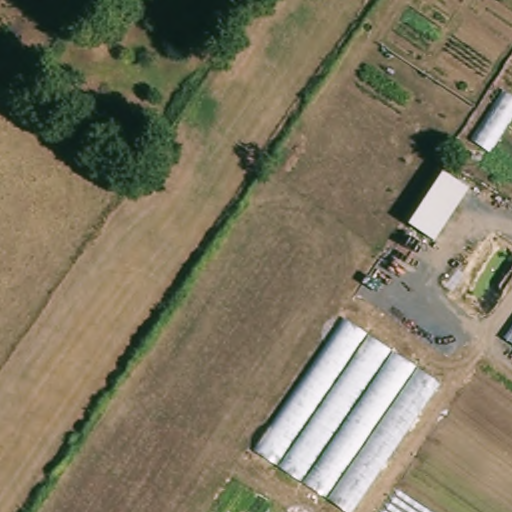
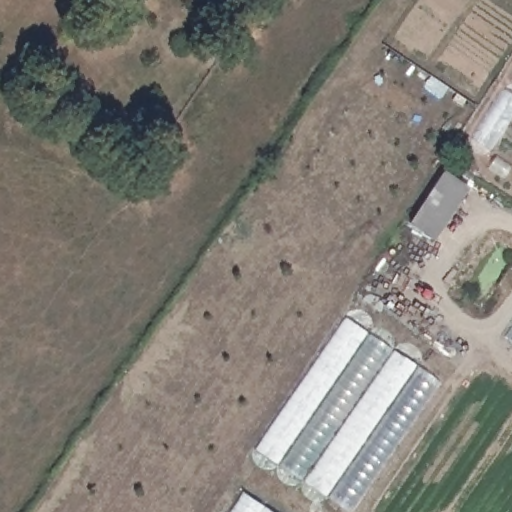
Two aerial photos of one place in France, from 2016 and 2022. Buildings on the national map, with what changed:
unchanged [(469,189),(434,241),(409,223),(443,170),(469,189)]
unchanged [(438,382),(347,512),(345,512),(254,451),(344,318),(438,382)]
unchanged [(506,337),(512,328),(512,342),(506,337)]
new [(270,512),(229,512),(242,493),(270,512)]

